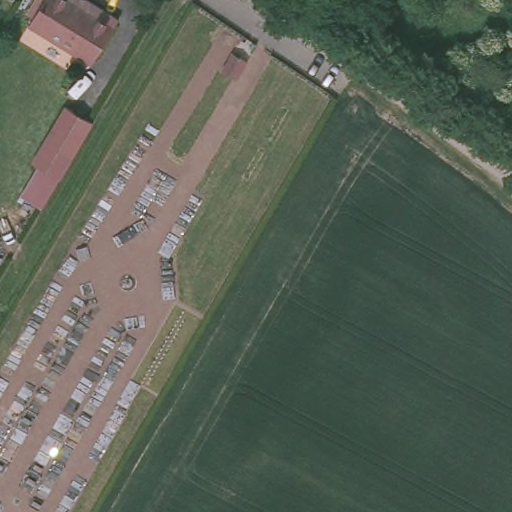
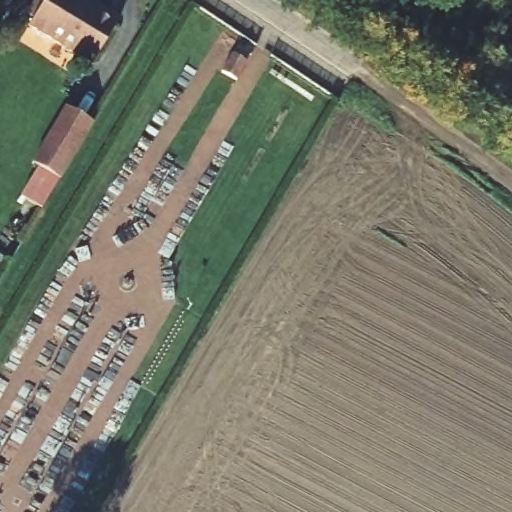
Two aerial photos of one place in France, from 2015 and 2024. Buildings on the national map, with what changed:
unchanged [(79,4),(83,0),(84,0),(116,20),(90,63),(25,26),(41,0),(72,0),(79,4)]
unchanged [(248,63),(236,82),(222,73),(233,53),(248,63)]
unchanged [(87,116),(53,174),(25,159),(60,102),(87,116)]

